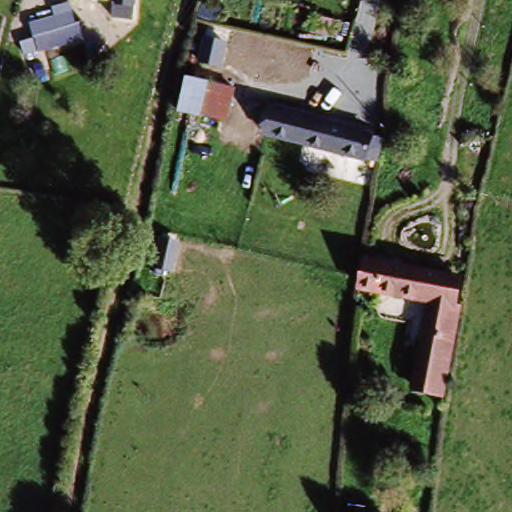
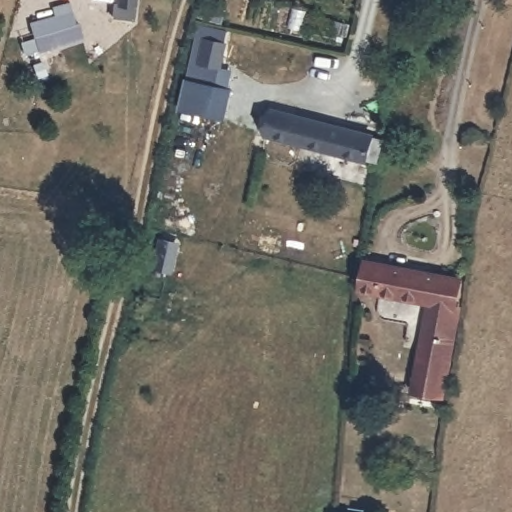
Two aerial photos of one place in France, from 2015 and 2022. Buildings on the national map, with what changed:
unchanged [(73,0),(75,0),(77,10),(82,7),(91,27),(67,40),(26,51),(24,39),(36,34),(32,22),(60,14),(58,7),(73,0)]
unchanged [(140,0),(138,14),(137,20),(115,17),(116,12),(118,0),(140,0)]
unchanged [(237,90),(230,121),(184,110),(192,78),(237,90)]
unchanged [(313,152),(315,142),(276,133),(274,142),(260,138),(261,130),(267,104),(370,127),(382,130),(377,157),(365,154),(326,145),(325,154),(313,152)]
unchanged [(427,324),(429,307),(370,292),(353,288),(357,265),(375,269),(449,286),(462,288),(454,330),(440,394),(414,387),(427,324)]

